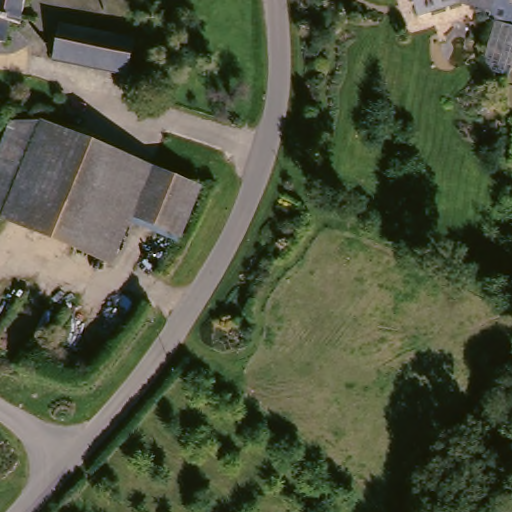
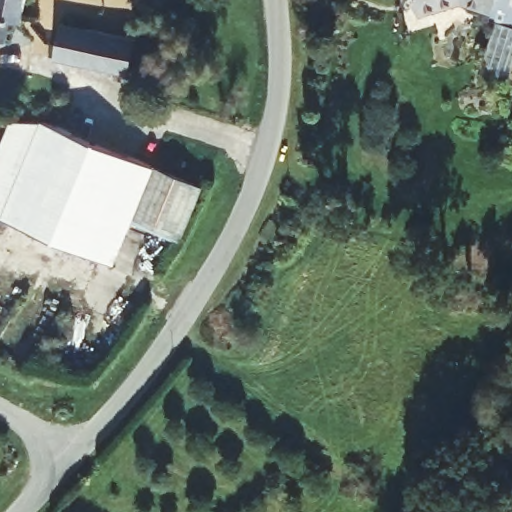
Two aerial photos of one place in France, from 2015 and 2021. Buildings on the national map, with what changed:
unchanged [(16,18),(7,17),(4,40),(0,39),(0,0),(20,0),(16,18)]
unchanged [(413,4),(412,0),(431,0),(413,4)]
unchanged [(512,12),(493,5),(478,0),(512,0),(512,12)]
unchanged [(487,58),(479,47),(493,5),(512,12),(512,39),(503,64),(487,58)]
unchanged [(64,22),(136,39),(129,71),(56,54),(64,22)]
unchanged [(184,239),(136,219),(114,266),(0,216),(0,154),(12,125),(45,120),(94,141),(205,186),(184,239)]

